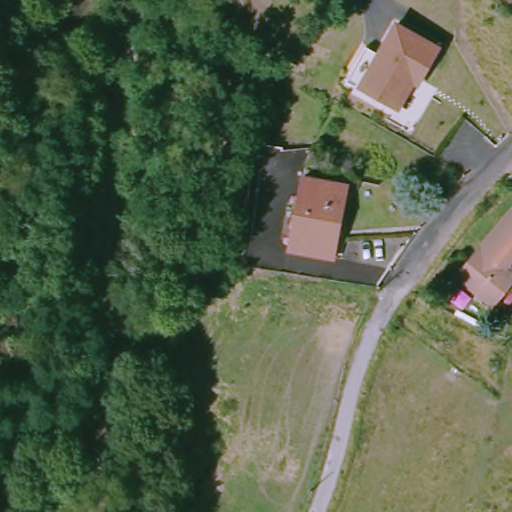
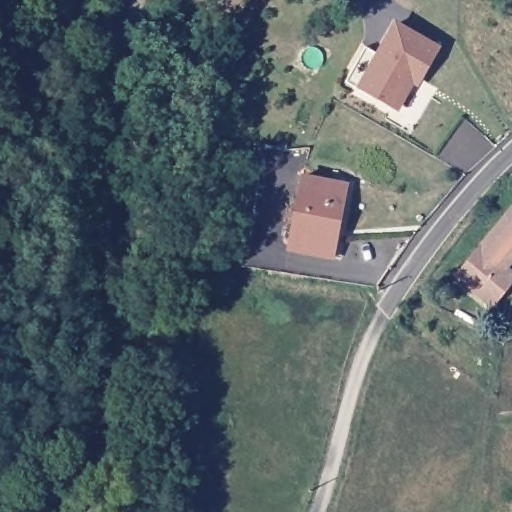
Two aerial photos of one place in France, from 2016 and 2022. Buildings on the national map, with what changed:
unchanged [(358,72),(371,52),(383,59),(402,29),(441,52),(445,55),(427,86),(416,79),(395,113),(363,94),(350,86),(358,72)]
unchanged [(291,220),(298,176),(343,185),(336,229),(291,220)]
unchanged [(127,232),(128,196),(152,196),(149,233),(127,232)]
unchanged [(484,307),(451,274),(512,212),(512,257),(495,273),(506,286),(484,307)]
unchanged [(286,248),(291,220),(336,229),(332,256),(286,248)]

